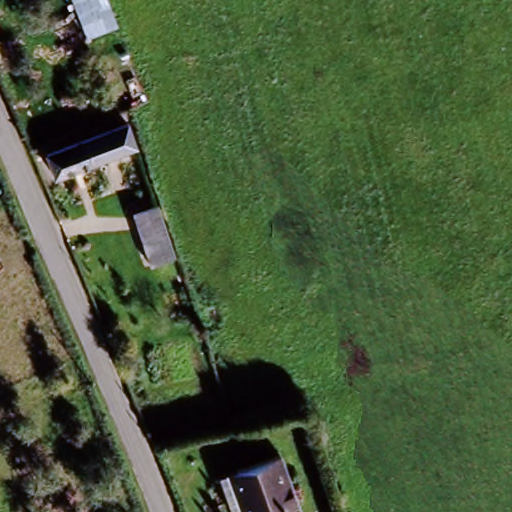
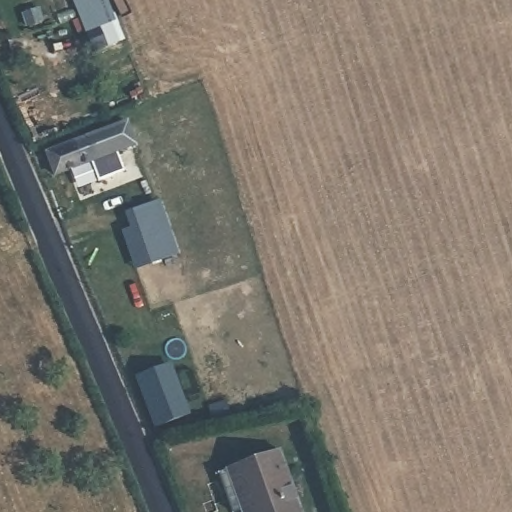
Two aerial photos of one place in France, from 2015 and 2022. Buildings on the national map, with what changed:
unchanged [(84,36),(72,0),(109,0),(117,22),(84,36)]
unchanged [(135,144),(53,175),(46,159),(43,150),(100,129),(126,119),(135,144)]
unchanged [(146,265),(130,213),(156,205),(172,257),(146,265)]
new [(174,366),(198,422),(162,434),(135,383),(174,366)]
unchanged [(223,469),(273,451),(294,512),(238,512),(223,469)]

